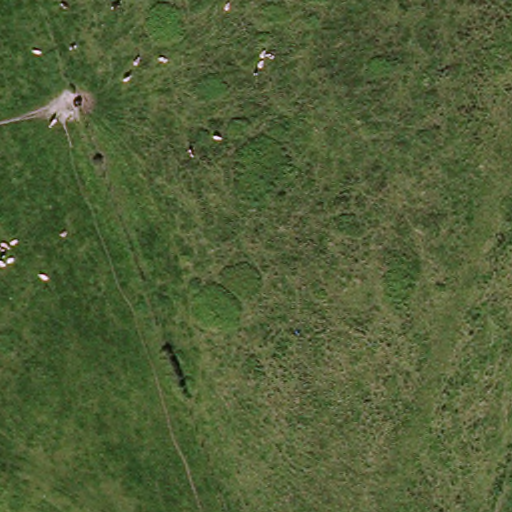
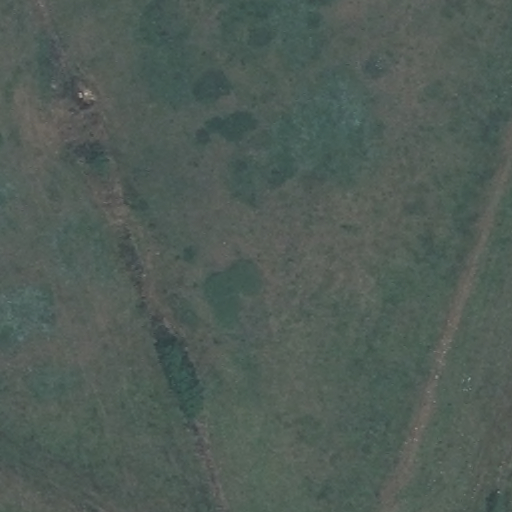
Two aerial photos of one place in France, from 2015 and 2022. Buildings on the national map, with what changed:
[]

